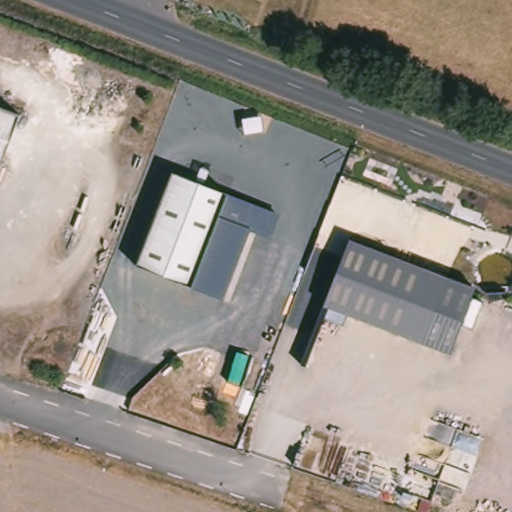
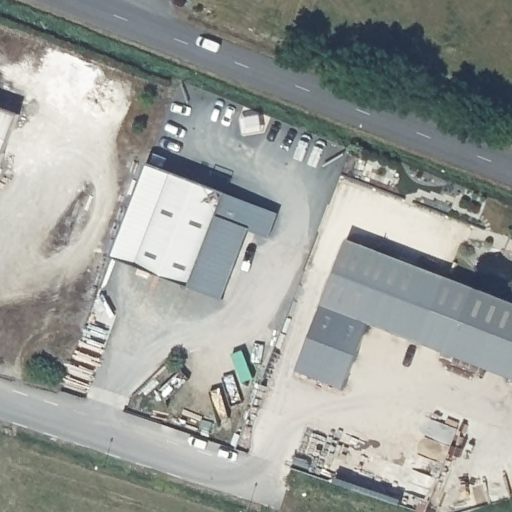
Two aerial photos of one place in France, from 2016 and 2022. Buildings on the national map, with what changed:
unchanged [(16,106),(0,149),(0,100),(16,106)]
unchanged [(191,285),(136,266),(170,173),(227,194),(280,212),(270,239),(250,230),(222,300),(191,285)]
unchanged [(348,240),(446,276),(421,342),(326,307),(348,240)]
new [(512,301),(512,377),(421,342),(446,276),(512,301)]
new [(346,386),(300,367),(326,307),(370,323),(346,386)]

